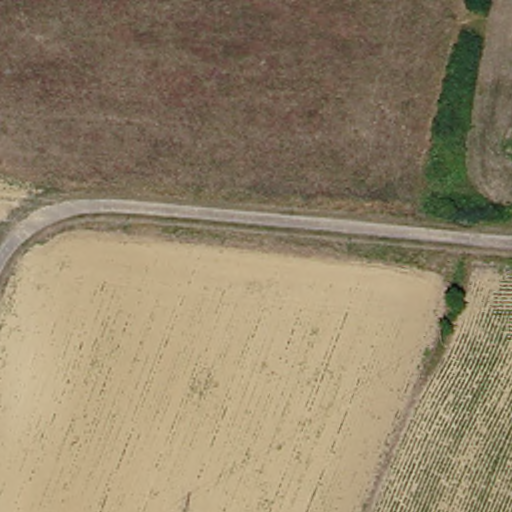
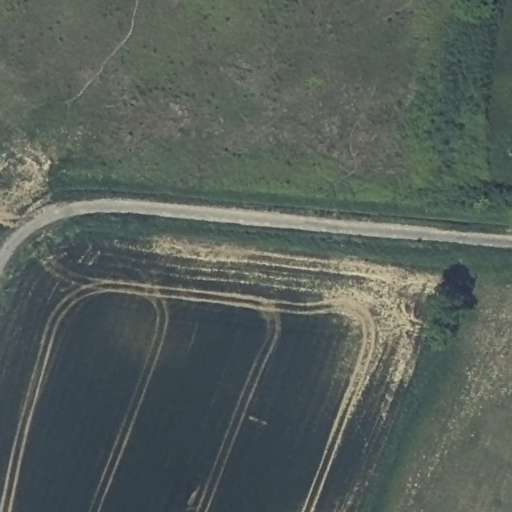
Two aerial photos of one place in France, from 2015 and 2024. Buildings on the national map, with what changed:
[]

